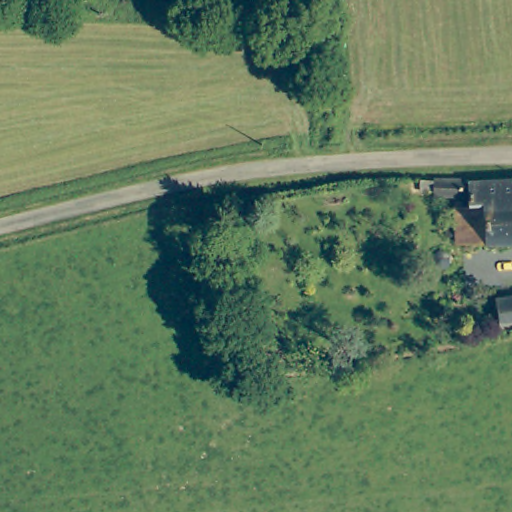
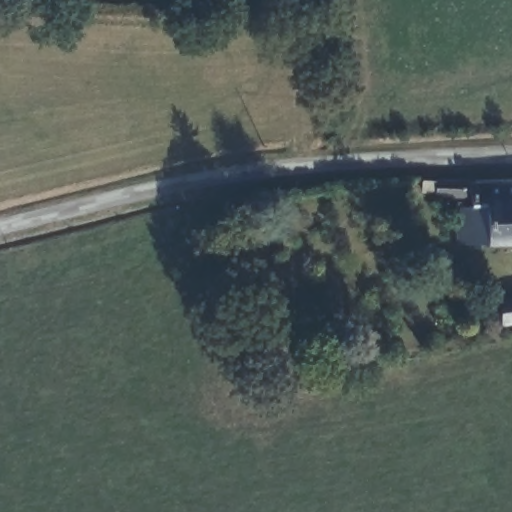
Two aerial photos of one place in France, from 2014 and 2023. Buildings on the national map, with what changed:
unchanged [(476,193),(469,195),(461,194),(454,189),(437,190),(436,180),(435,176),(475,175),(476,193)]
unchanged [(469,212),(485,211),(485,180),(512,179),(512,243),(497,244),(470,245),(469,212)]
unchanged [(450,252),(458,251),(463,252),(464,269),(459,272),(452,272),(446,268),(444,262),(445,257),(450,252)]
unchanged [(512,302),(512,328),(501,330),(498,304),(512,302)]

